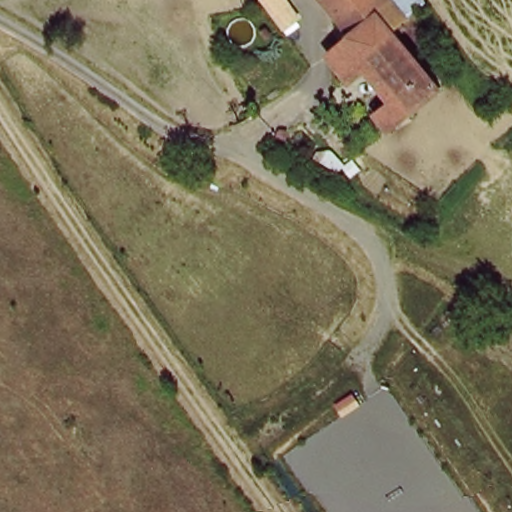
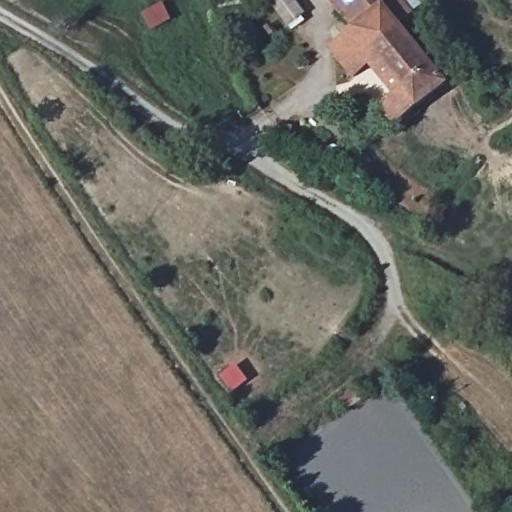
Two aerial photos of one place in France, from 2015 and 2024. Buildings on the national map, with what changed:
unchanged [(383,105),(410,85),(382,54),(359,72),(337,45),(360,25),(338,0),(406,0),(414,9),(401,20),(452,82),(398,123),(383,105)]

